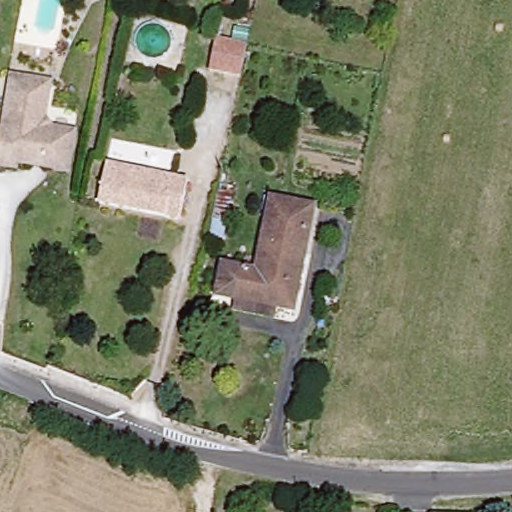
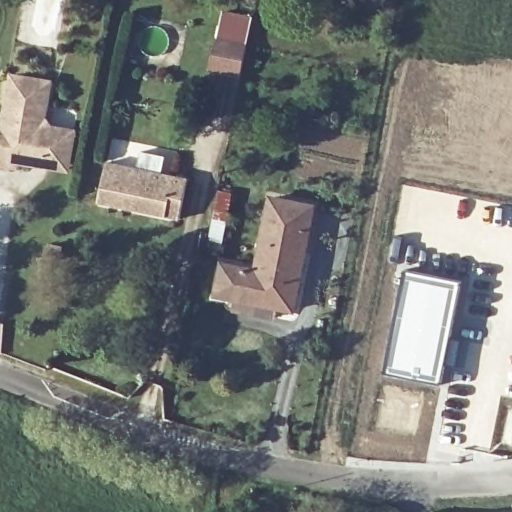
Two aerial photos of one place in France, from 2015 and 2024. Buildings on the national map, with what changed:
unchanged [(237,77),(206,72),(213,40),(243,46),(242,53),(237,77)]
unchanged [(16,165),(16,170),(0,168),(0,125),(7,80),(45,85),(39,122),(46,130),(70,134),(67,155),(65,172),(48,170),(16,165)]
unchanged [(99,210),(107,167),(184,182),(177,224),(99,210)]
unchanged [(232,193),(224,246),(208,243),(218,191),(232,193)]
unchanged [(285,307),(212,291),(219,262),(254,270),(271,194),(309,202),(285,307)]
new [(404,268),(462,281),(441,384),(382,373),(404,268)]

